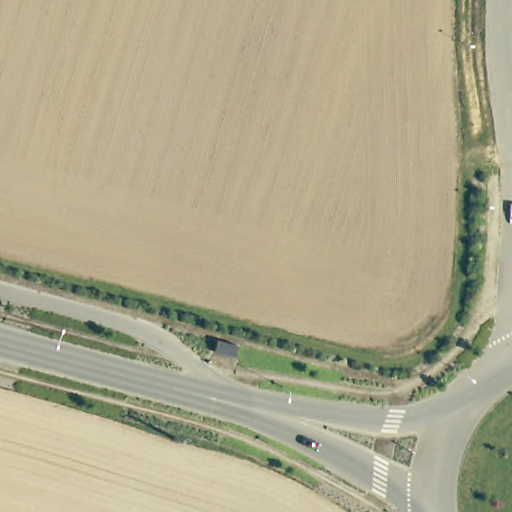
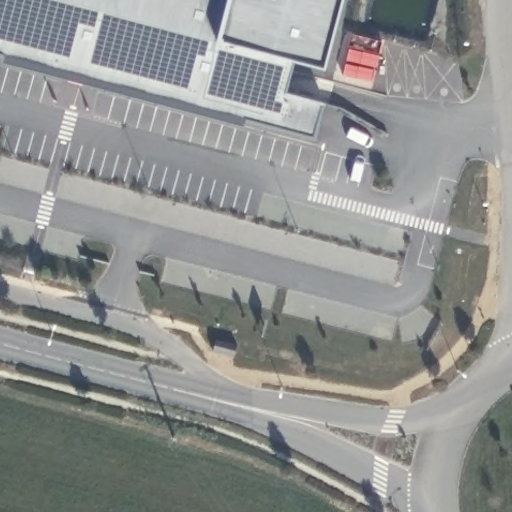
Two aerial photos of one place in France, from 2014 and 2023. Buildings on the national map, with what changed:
new [(295,61),(286,91),(325,102),(315,136),(246,118),(244,126),(3,64),(5,57),(0,56),(0,0),(346,0),(327,70),(295,61)]
unchanged [(235,352),(235,357),(212,351),(214,347),(216,339),(237,345),(235,352)]

